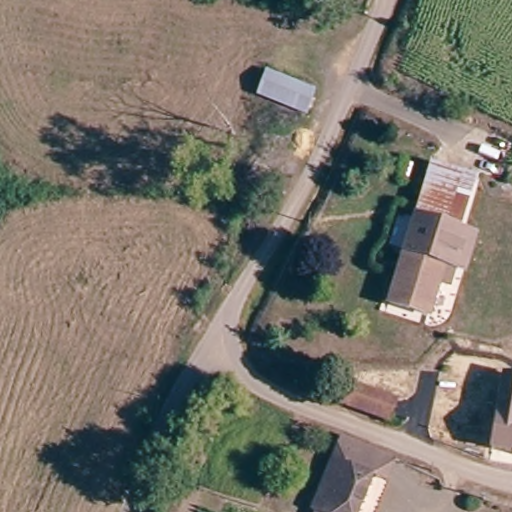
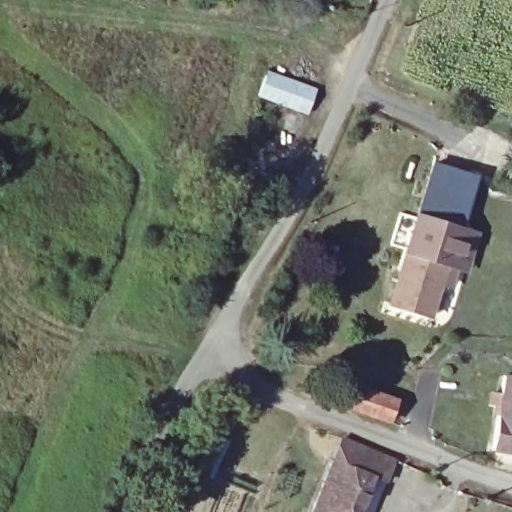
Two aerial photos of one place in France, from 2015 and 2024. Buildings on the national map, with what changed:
unchanged [(319,86),(310,115),(257,99),(268,68),(319,86)]
unchanged [(471,270),(453,267),(444,266),(437,312),(396,307),(424,161),(465,168),(455,220),(466,224),(479,226),(471,270)]
unchanged [(512,451),(495,446),(505,397),(497,395),(485,391),(486,376),(500,377),(507,374),(512,375),(512,451)]
unchanged [(349,385),(370,393),(375,384),(403,396),(391,426),(343,406),(349,385)]
unchanged [(342,450),(347,438),(360,442),(395,457),(387,482),(375,478),(362,512),(318,512),(342,450)]

